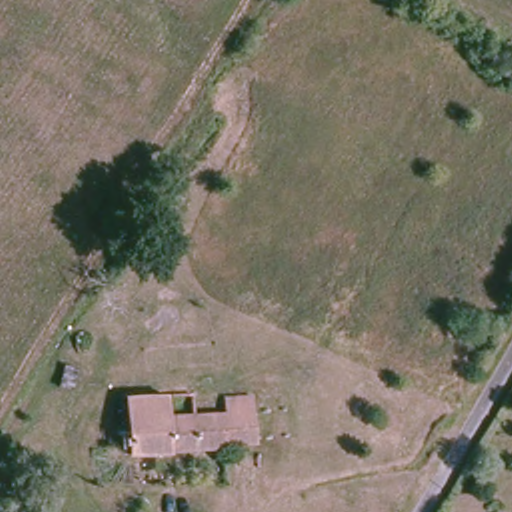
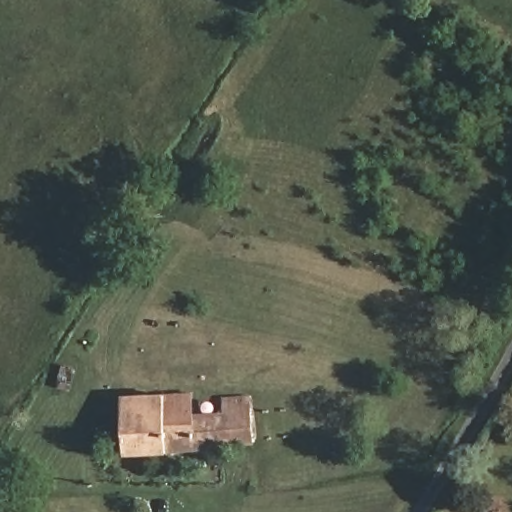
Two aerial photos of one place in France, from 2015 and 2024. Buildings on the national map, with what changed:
unchanged [(61,385),(65,365),(77,371),(71,389),(61,385)]
unchanged [(127,456),(126,395),(167,393),(171,414),(226,412),(223,397),(252,395),(257,445),(127,456)]

